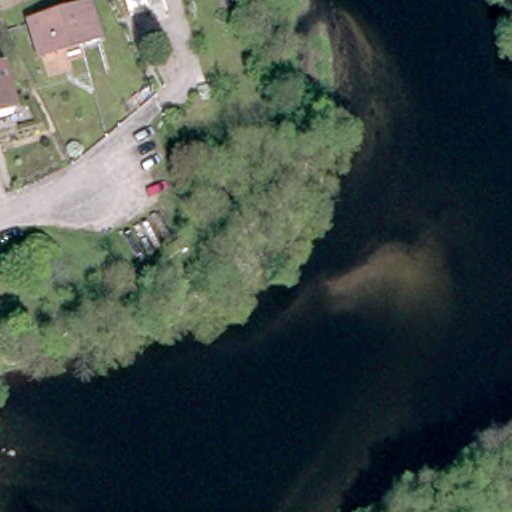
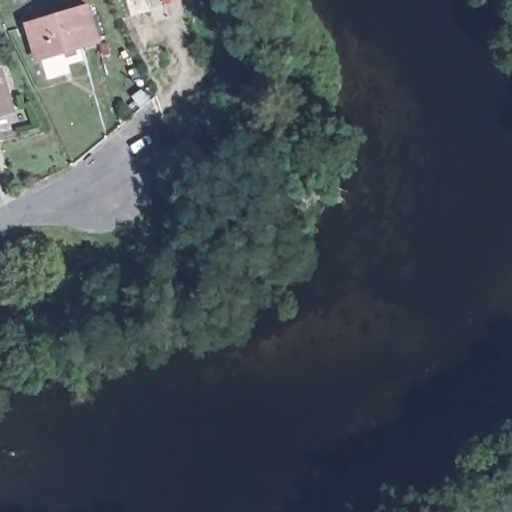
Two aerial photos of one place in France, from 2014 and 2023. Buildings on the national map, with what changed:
unchanged [(29,24),(91,6),(101,39),(40,59),(29,24)]
unchanged [(15,109),(0,113),(0,70),(3,70),(15,109)]

